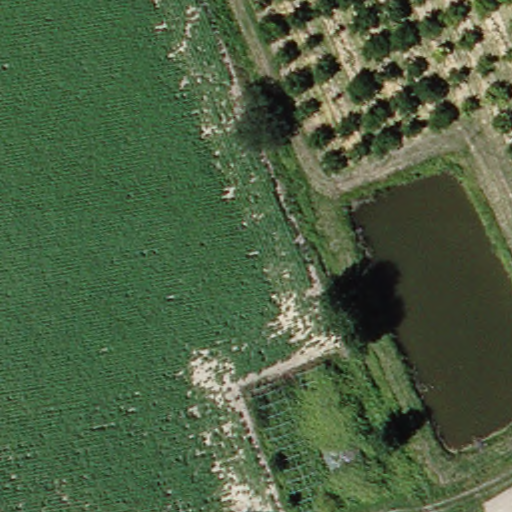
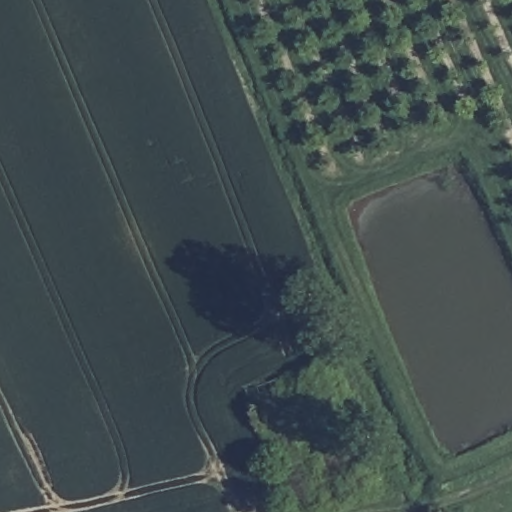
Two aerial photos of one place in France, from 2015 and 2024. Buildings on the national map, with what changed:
[]

